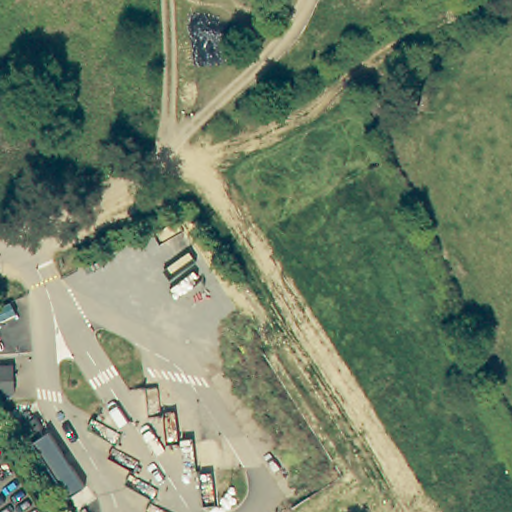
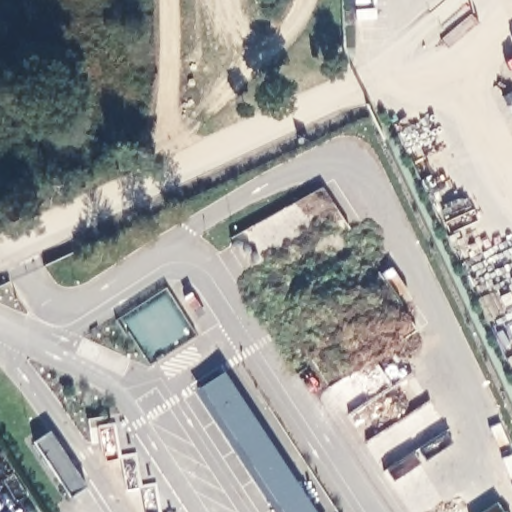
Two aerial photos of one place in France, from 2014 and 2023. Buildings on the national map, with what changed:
new [(273,512),(194,391),(223,373),(315,512),(273,512)]
unchanged [(88,496),(72,508),(35,453),(51,442),(88,496)]

